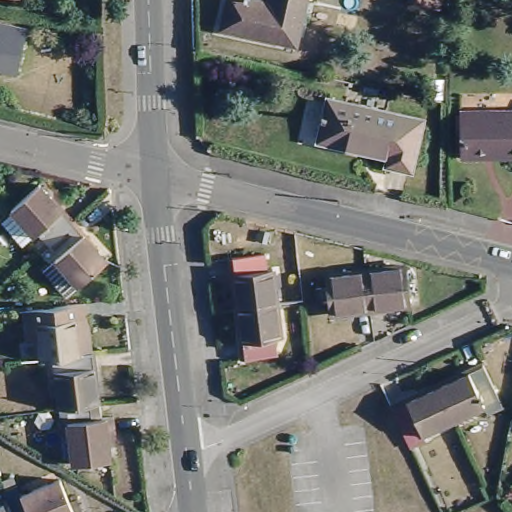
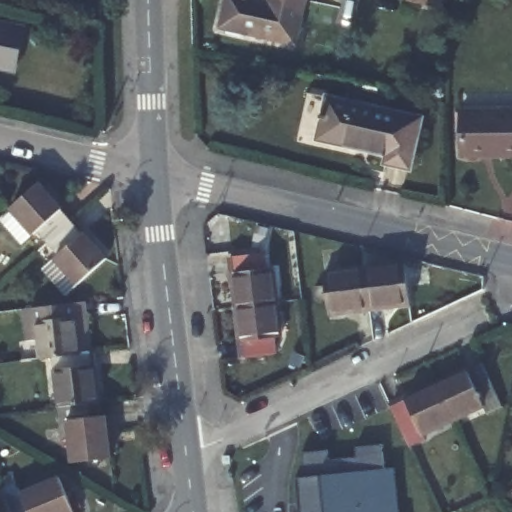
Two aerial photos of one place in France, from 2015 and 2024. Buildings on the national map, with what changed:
unchanged [(264,0),(292,0),(283,42),(217,28),(222,0),(252,0),(264,3),(264,0)]
unchanged [(440,0),(438,9),(409,2),(409,0),(440,0)]
unchanged [(27,31),(19,73),(0,69),(0,24),(27,31)]
unchanged [(422,119),(411,170),(388,165),(389,156),(320,142),(329,99),(422,119)]
unchanged [(461,113),(512,112),(512,156),(462,157),(461,113)]
unchanged [(37,233),(21,246),(0,221),(12,211),(10,210),(38,186),(71,222),(47,244),(37,233)]
unchanged [(107,261),(66,297),(43,270),(58,257),(47,244),(71,222),(107,261)]
unchanged [(229,259),(261,255),(262,269),(270,269),(274,306),(236,311),(229,259)]
unchanged [(404,271),(408,307),(387,308),(387,314),(367,316),(362,276),(404,271)]
unchanged [(348,318),(348,315),(325,317),(320,281),(362,276),(367,316),(348,318)]
unchanged [(84,354),(52,358),(39,359),(37,342),(27,342),(23,310),(70,304),(84,303),(86,319),(87,333),(89,353),(84,354)]
unchanged [(279,340),(274,341),(275,356),(243,359),(236,311),(274,306),(279,340)]
unchanged [(99,403),(85,405),(58,408),(55,386),(52,358),(84,354),(89,353),(92,353),(99,403)]
unchanged [(480,365),(495,392),(481,399),(483,405),(451,421),(435,387),(480,365)]
unchanged [(423,436),(419,430),(405,437),(391,409),(435,387),(451,421),(423,436)]
unchanged [(100,418),(113,417),(115,436),(111,436),(112,458),(70,463),(65,424),(60,424),(58,408),(85,405),(99,403),(100,418)]
new [(333,453),(334,462),(356,460),(355,450),(380,446),(384,472),(393,470),(397,512),(297,512),(294,481),(303,480),(300,455),(333,453)]
unchanged [(15,486),(19,495),(57,480),(70,512),(11,512),(6,500),(3,491),(15,486)]
unchanged [(512,486),(512,497),(509,501),(503,494),(512,486)]
unchanged [(6,500),(11,512),(0,512),(0,502),(6,500)]

